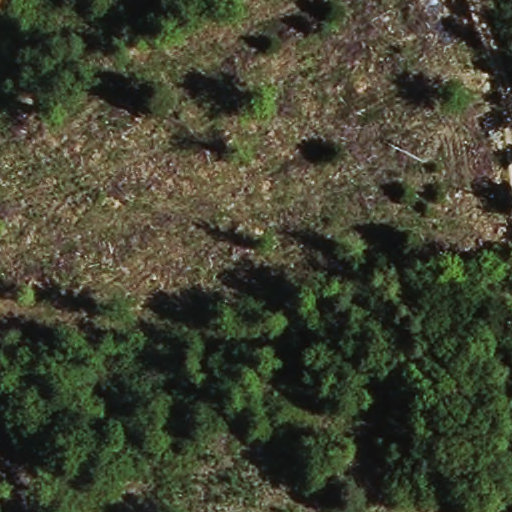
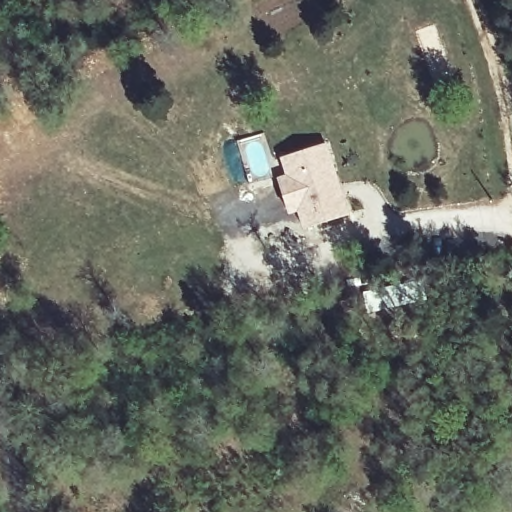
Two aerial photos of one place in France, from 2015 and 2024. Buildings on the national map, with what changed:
new [(352,213),(305,230),(298,211),(290,214),(278,178),(287,174),(282,158),(329,142),(352,213)]

